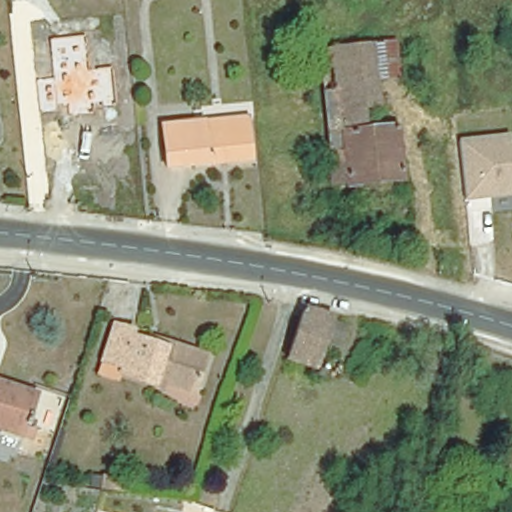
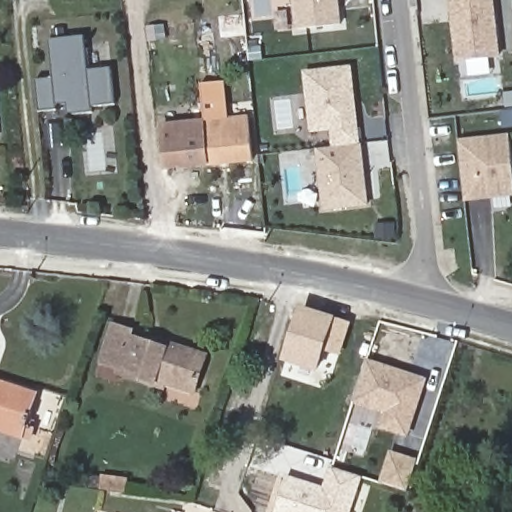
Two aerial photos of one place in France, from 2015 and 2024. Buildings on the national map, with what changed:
new [(294,28),(292,0),(338,0),(341,23),(294,28)]
new [(454,61),(449,0),(495,0),(501,58),(454,61)]
new [(55,78),(51,40),(85,36),(90,71),(114,69),(117,104),(94,106),(95,113),(71,115),(69,103),(57,104),(58,109),(41,110),(37,80),(55,78)]
demolished [(400,70),(376,73),(378,100),(365,101),(367,124),(398,120),(405,173),(335,180),(319,44),(395,36),(400,70)]
new [(355,68),(370,207),(322,211),(315,149),(331,147),(330,132),(311,133),(303,72),(355,68)]
unchanged [(249,153),(162,161),(159,120),(244,111),(249,153)]
unchanged [(512,196),(467,202),(460,140),(512,134),(512,138),(512,196)]
unchanged [(306,308),(336,318),(317,368),(287,357),(306,308)]
unchanged [(131,379),(114,373),(116,365),(97,359),(109,324),(128,330),(127,335),(144,341),(146,334),(164,340),(202,354),(190,391),(161,381),(159,389),(131,379)]
new [(428,379),(409,438),(379,428),(383,414),(354,404),(368,360),(428,379)]
unchanged [(37,388),(26,422),(35,425),(32,433),(0,423),(0,376),(37,388)]
new [(292,482),(295,476),(322,485),(331,469),(357,478),(347,512),(276,512),(286,480),(292,482)]
unchanged [(130,478),(127,493),(100,489),(102,473),(130,478)]

